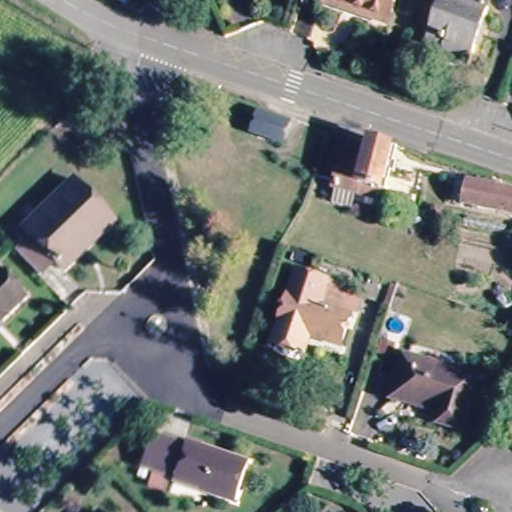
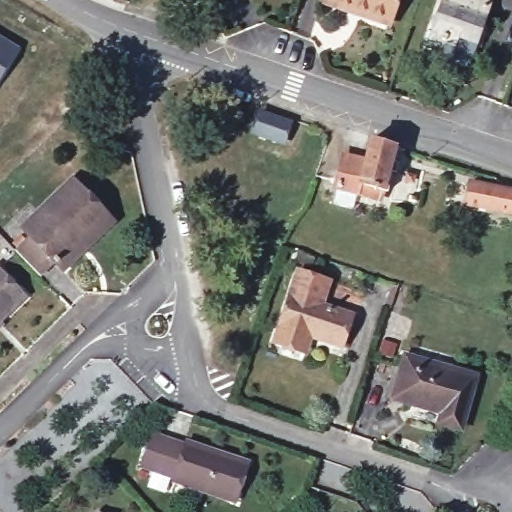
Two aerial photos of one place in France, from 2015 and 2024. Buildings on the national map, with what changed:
unchanged [(390,21),(328,0),(396,0),(390,21)]
unchanged [(465,66),(437,56),(442,41),(425,35),(437,0),(488,0),(465,66)]
new [(0,82),(0,34),(21,47),(0,82)]
unchanged [(272,141),(254,134),(261,112),(280,119),(290,122),(283,144),(272,141)]
unchanged [(387,189),(383,187),(381,196),(360,192),(360,194),(355,193),(353,204),(335,200),(337,189),(335,187),(343,151),(366,156),(372,135),(395,142),(386,178),(390,179),(387,189)]
unchanged [(415,185),(405,183),(407,173),(417,176),(415,185)]
unchanged [(64,266),(56,257),(41,272),(15,246),(30,230),(23,223),(72,176),(107,211),(113,217),(79,251),(64,266)]
unchanged [(509,209),(460,200),(465,179),(512,188),(512,209),(509,209)]
unchanged [(310,265),(297,261),(300,252),(313,256),(310,265)]
unchanged [(0,316),(0,267),(25,292),(0,316)]
unchanged [(300,346),(275,338),(298,267),(330,277),(323,300),(353,311),(342,342),(310,332),(305,348),(300,346)]
unchanged [(461,431),(439,424),(441,414),(393,400),(405,356),(477,376),(461,431)]
unchanged [(230,498),(169,477),(170,473),(137,463),(147,428),(181,441),(182,437),(244,458),(230,498)]
unchanged [(101,512),(95,512),(98,509),(101,512)]

